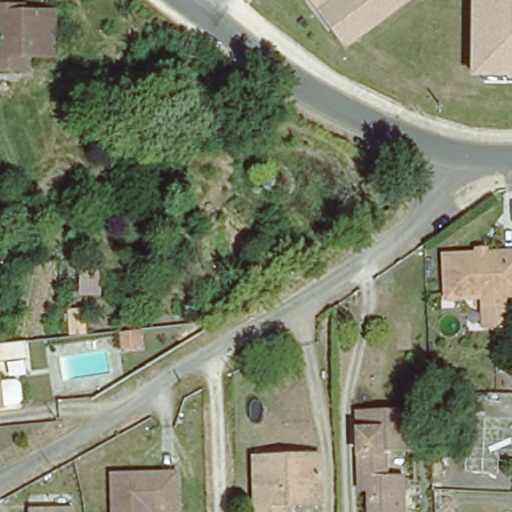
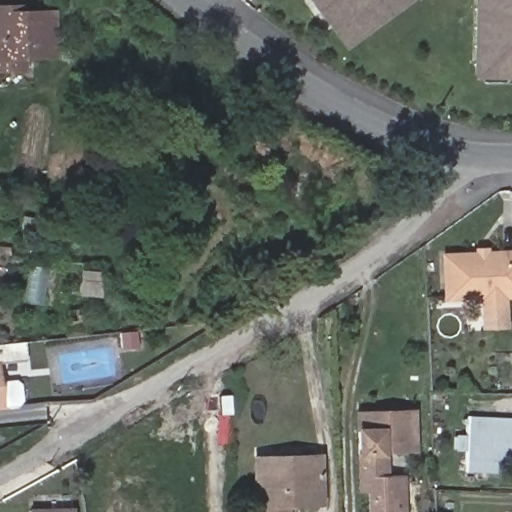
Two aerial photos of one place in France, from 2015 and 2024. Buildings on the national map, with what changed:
unchanged [(347,49),(318,10),(310,0),(411,0),(347,49)]
unchanged [(472,79),(473,0),(512,0),(512,79),(472,79)]
unchanged [(25,12),(55,12),(55,55),(25,55),(25,70),(0,70),(0,6),(11,6),(25,6),(25,12)]
unchanged [(506,300),(507,330),(485,330),(483,300),(445,302),(444,260),(477,260),(477,253),(485,253),(486,259),(508,258),(512,258),(512,299),(506,300)]
unchanged [(101,274),(100,293),(81,292),(82,273),(101,274)]
unchanged [(0,408),(0,380),(2,407),(0,408)]
unchanged [(381,457),(382,480),(398,480),(400,512),(366,512),(366,494),(356,494),(354,436),(353,417),(365,417),(410,415),(411,456),(381,457)]
new [(512,418),(512,464),(498,464),(498,472),(466,471),(466,416),(512,418)]
demolished [(494,472),(457,473),(460,443),(496,443),(494,472)]
unchanged [(283,512),(252,512),(250,458),(290,457),(315,457),(316,465),(317,502),(283,503),(283,512)]
unchanged [(172,512),(110,512),(109,481),(170,479),(172,512)]
unchanged [(75,508),(75,512),(28,512),(27,510),(75,508)]

